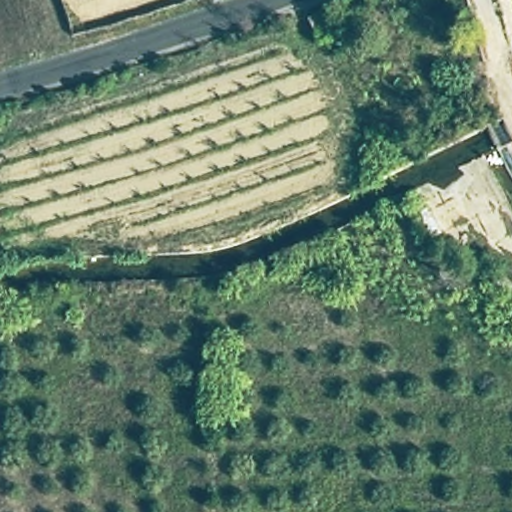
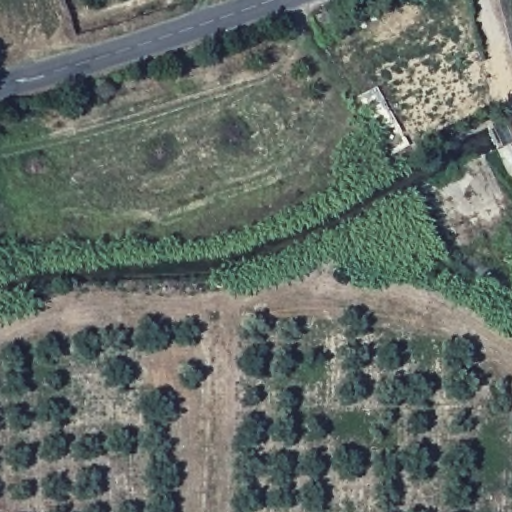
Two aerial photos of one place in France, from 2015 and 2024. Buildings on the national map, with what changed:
[]

